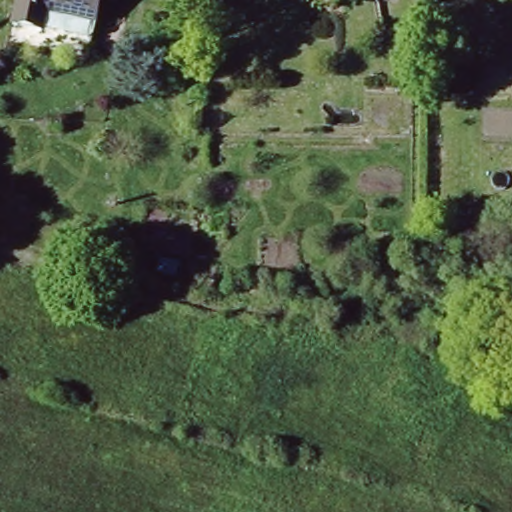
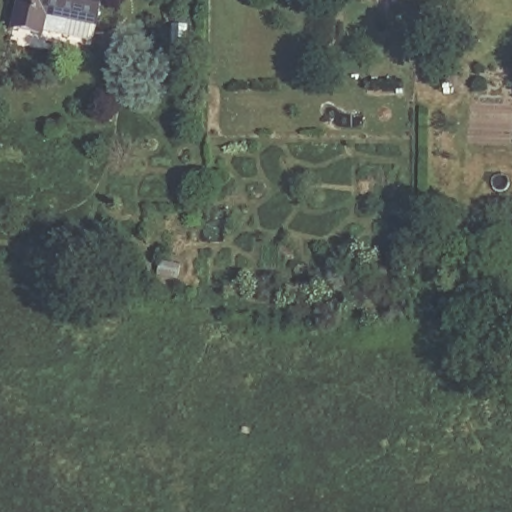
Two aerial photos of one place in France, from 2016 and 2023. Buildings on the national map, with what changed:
unchanged [(103,0),(100,26),(22,20),(24,0),(103,0)]

